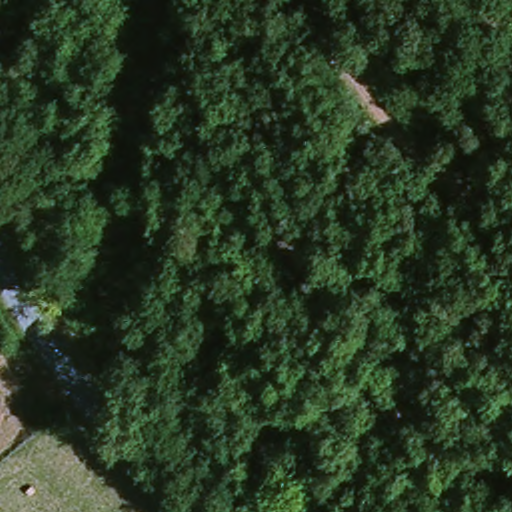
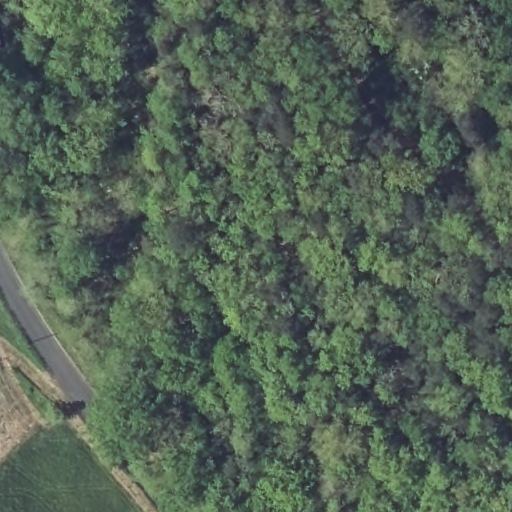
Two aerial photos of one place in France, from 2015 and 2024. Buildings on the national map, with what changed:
[]

